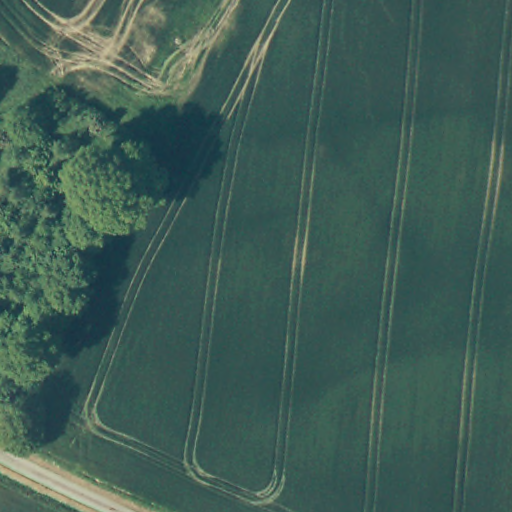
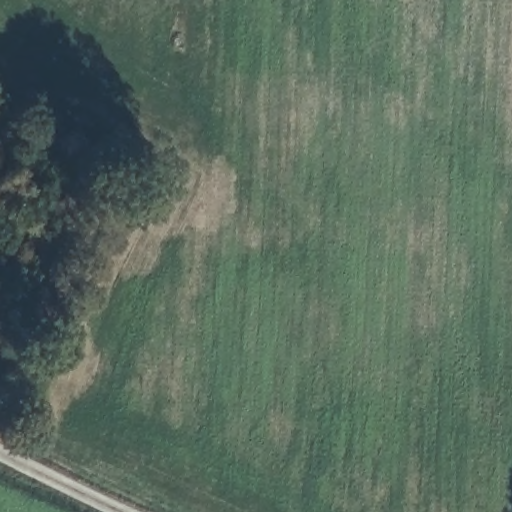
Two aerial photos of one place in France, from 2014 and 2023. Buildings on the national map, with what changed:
[]

